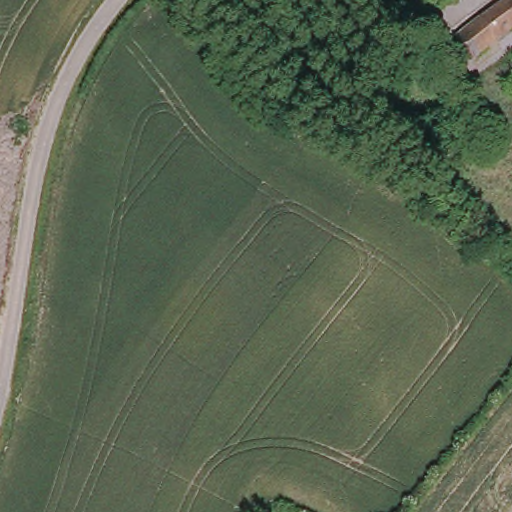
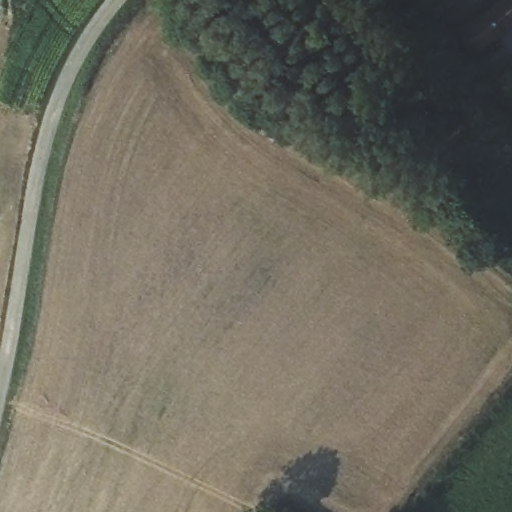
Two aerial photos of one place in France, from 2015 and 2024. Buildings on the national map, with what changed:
unchanged [(447,23),(488,0),(512,0),(512,15),(457,45),(447,23)]

